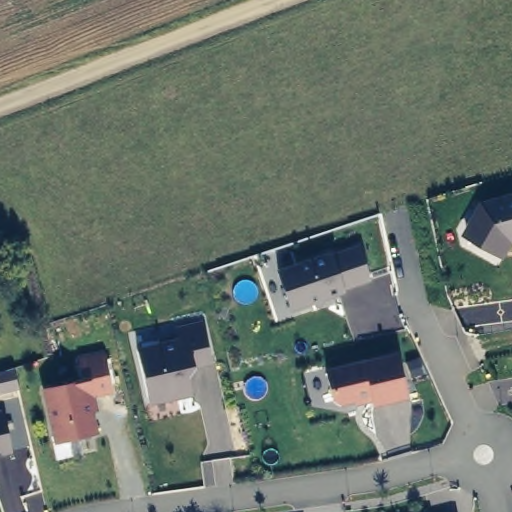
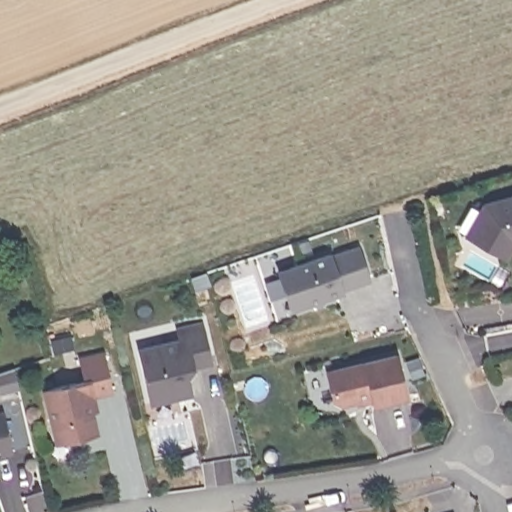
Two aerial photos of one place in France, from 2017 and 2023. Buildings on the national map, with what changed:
unchanged [(505,261),(461,236),(480,202),(512,192),(512,248),(505,261)]
unchanged [(340,292),(342,295),(288,313),(271,270),(328,252),(330,257),(358,247),(370,283),(340,292)]
unchanged [(215,365),(188,372),(195,396),(147,409),(131,350),(180,337),(178,326),(205,320),(215,365)]
unchanged [(115,392),(98,396),(102,414),(93,415),(98,434),(52,445),(39,388),(79,377),(76,358),(106,351),(115,392)]
unchanged [(370,408),(366,401),(334,407),(323,370),(390,353),(405,401),(370,408)]
unchanged [(0,458),(0,411),(6,410),(15,454),(0,458)]

